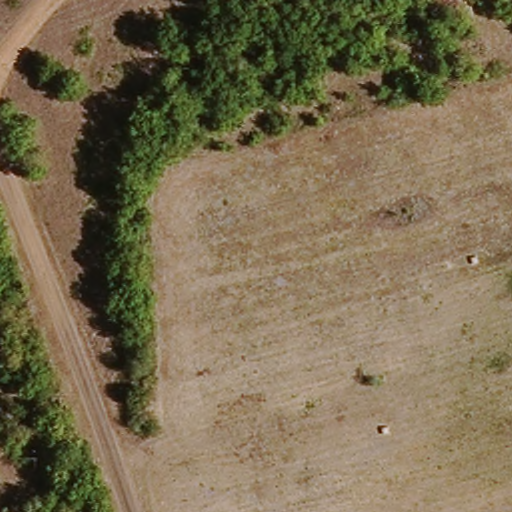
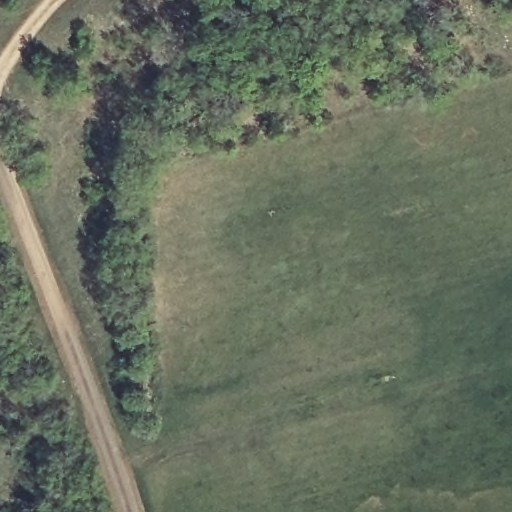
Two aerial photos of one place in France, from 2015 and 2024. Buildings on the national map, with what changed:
unchanged [(428,0),(448,0),(455,7),(440,24),(422,7),(428,0)]

